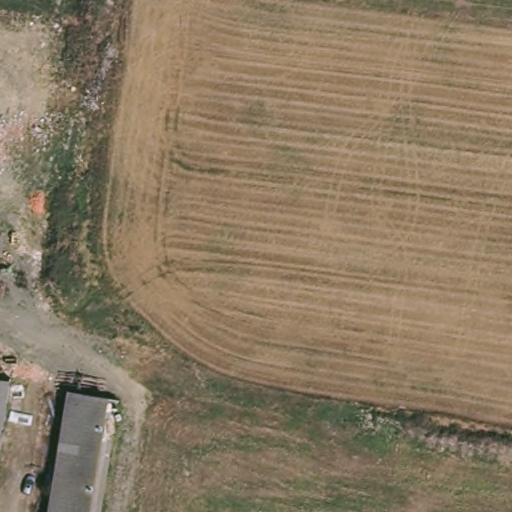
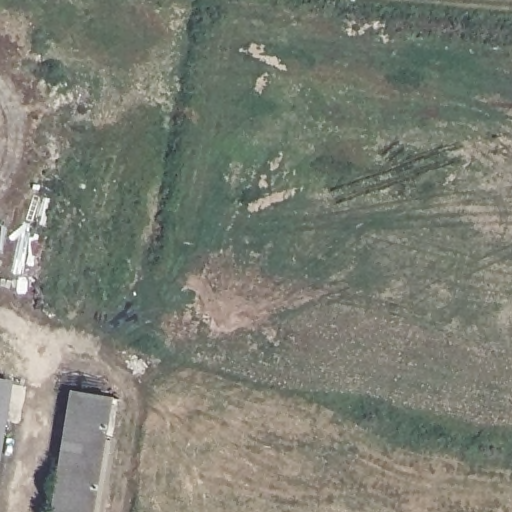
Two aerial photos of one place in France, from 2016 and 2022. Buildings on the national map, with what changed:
unchanged [(0,444),(0,383),(9,384),(0,444)]
unchanged [(98,512),(55,512),(75,393),(119,401),(98,512)]

